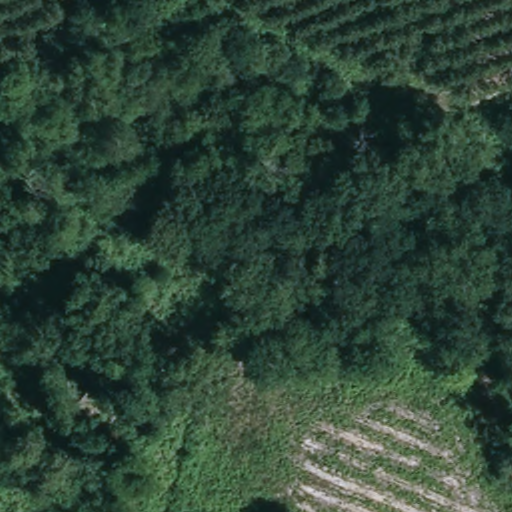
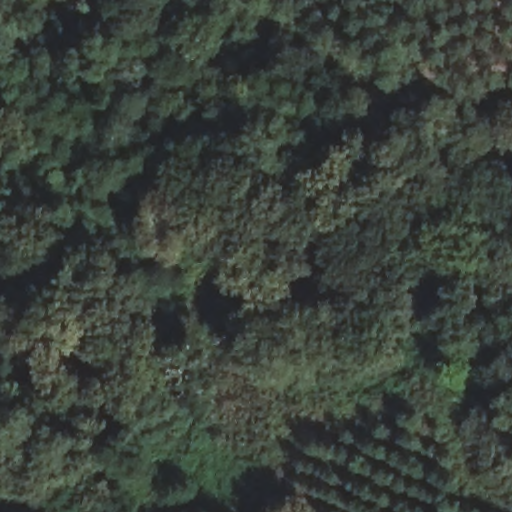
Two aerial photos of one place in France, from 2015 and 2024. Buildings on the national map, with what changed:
[]

